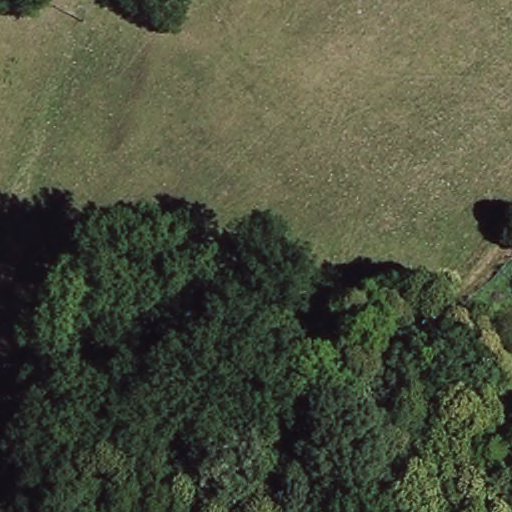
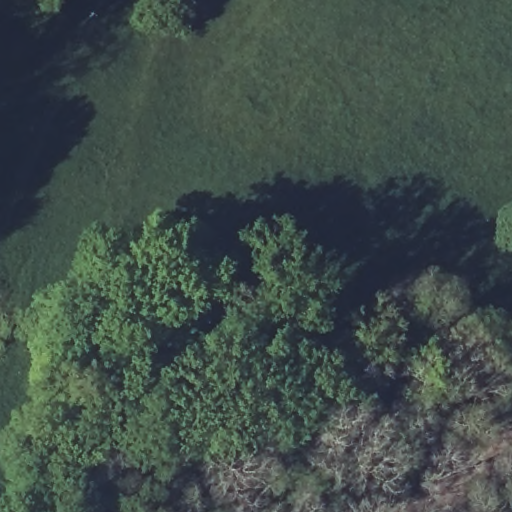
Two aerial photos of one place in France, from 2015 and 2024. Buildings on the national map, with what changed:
unchanged [(512,301),(503,296),(512,282),(512,301)]

